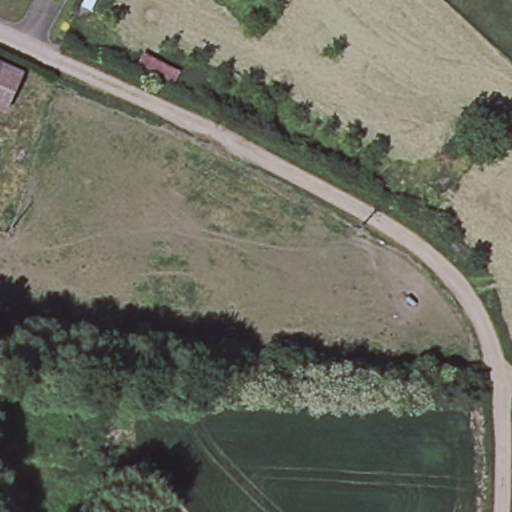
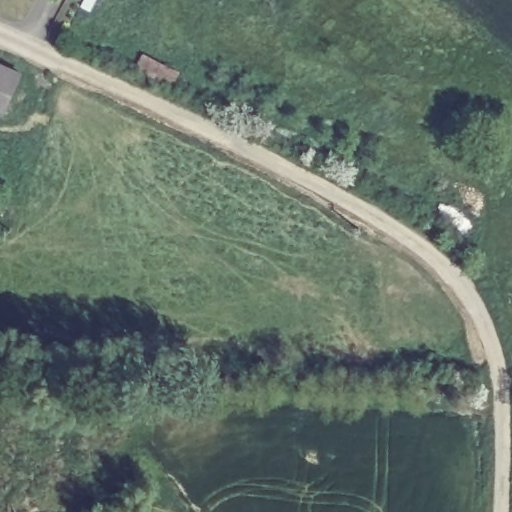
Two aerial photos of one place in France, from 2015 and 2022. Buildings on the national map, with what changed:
unchanged [(25,75),(9,115),(0,111),(0,64),(25,75)]

